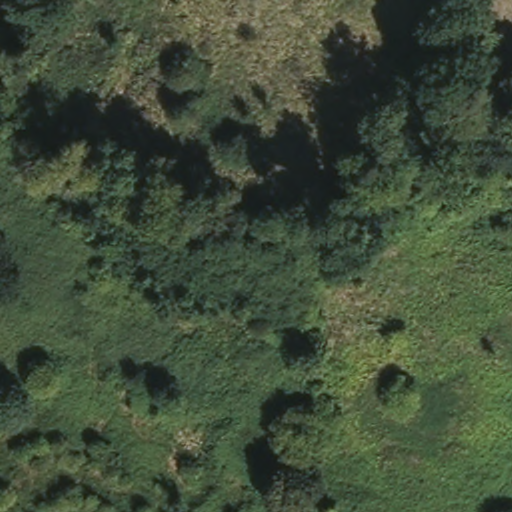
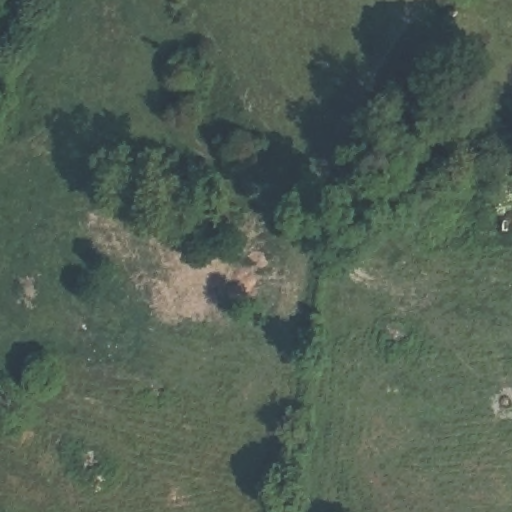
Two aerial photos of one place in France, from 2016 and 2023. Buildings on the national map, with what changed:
unchanged [(495,201),(512,200),(512,224),(471,223),(473,198),(494,196),(495,201)]

